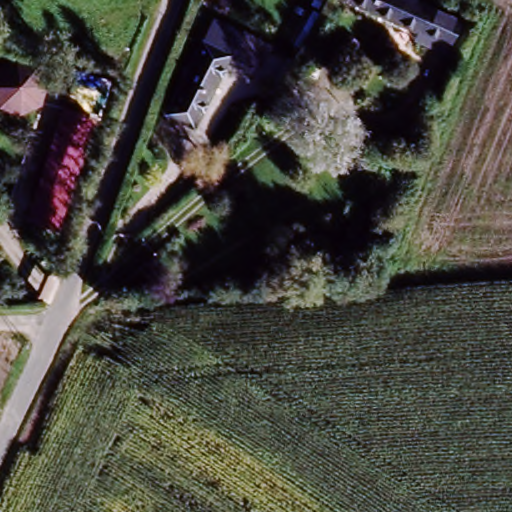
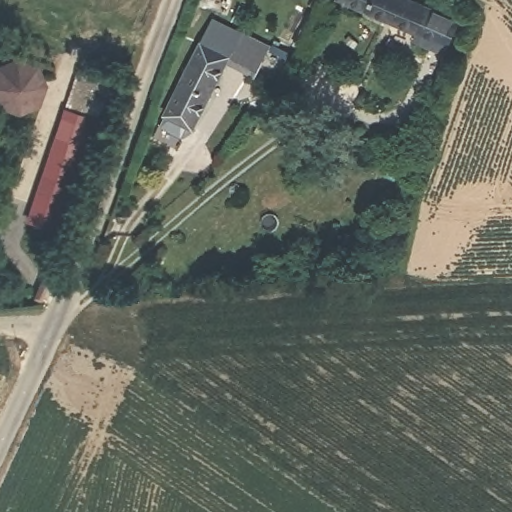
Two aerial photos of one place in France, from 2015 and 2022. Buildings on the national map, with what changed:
unchanged [(339,0),(415,0),(431,7),(418,34),(339,1),(339,0)]
unchanged [(460,22),(443,57),(414,43),(418,34),(431,7),(460,22)]
unchanged [(195,44),(210,16),(240,31),(230,57),(227,64),(196,132),(164,116),(195,44)]
unchanged [(230,57),(240,31),(273,44),(257,79),(227,64),(230,57)]
unchanged [(16,76),(24,77),(33,84),(38,95),(37,103),(31,114),(18,120),(10,120),(0,113),(0,81),(9,76),(16,76)]
unchanged [(77,146),(56,227),(30,220),(51,139),(77,146)]

